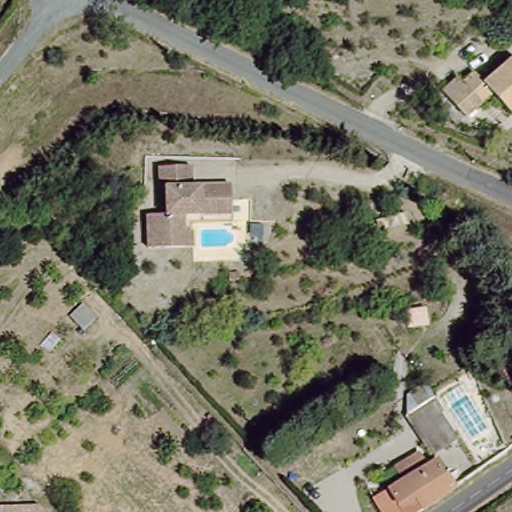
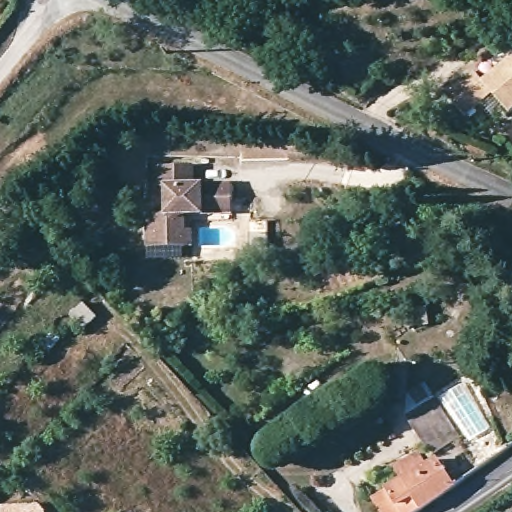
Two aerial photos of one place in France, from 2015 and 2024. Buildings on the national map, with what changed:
unchanged [(502,100),(475,121),(450,94),(467,80),(471,83),(484,74),(491,82),(512,66),(512,111),(502,100)]
unchanged [(147,211),(168,210),(167,162),(197,162),(198,182),(235,182),(235,201),(222,202),(223,212),(187,214),(187,247),(148,248),(147,211)]
unchanged [(434,396),(458,435),(432,452),(405,416),(434,396)]
unchanged [(380,501),(407,482),(397,467),(419,452),(432,467),(440,461),(459,485),(422,512),(386,512),(380,501)]

